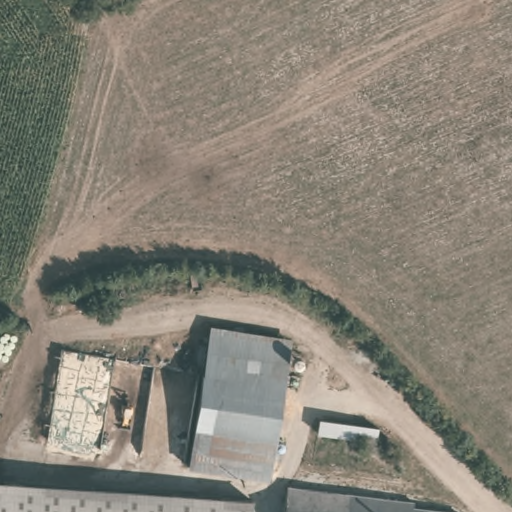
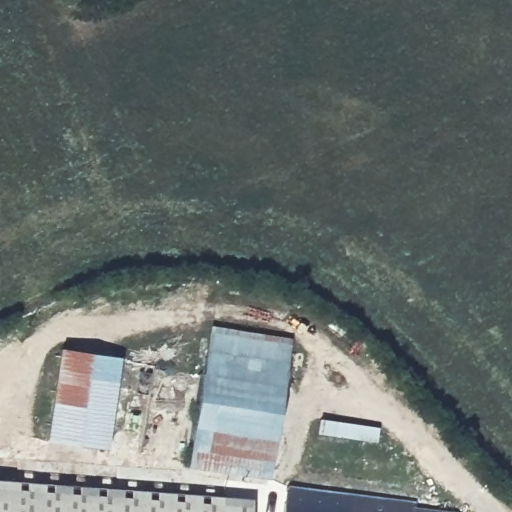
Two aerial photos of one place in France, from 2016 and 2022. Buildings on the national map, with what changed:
unchanged [(203,381),(208,338),(286,346),(281,389),(203,381)]
new [(107,449),(45,440),(59,348),(121,357),(107,449)]
unchanged [(198,429),(203,381),(281,389),(276,438),(198,429)]
unchanged [(276,438),(271,479),(194,471),(198,429),(276,438)]
unchanged [(250,512),(0,512),(0,486),(250,512)]
unchanged [(415,506),(414,512),(285,512),(287,491),(415,506)]

